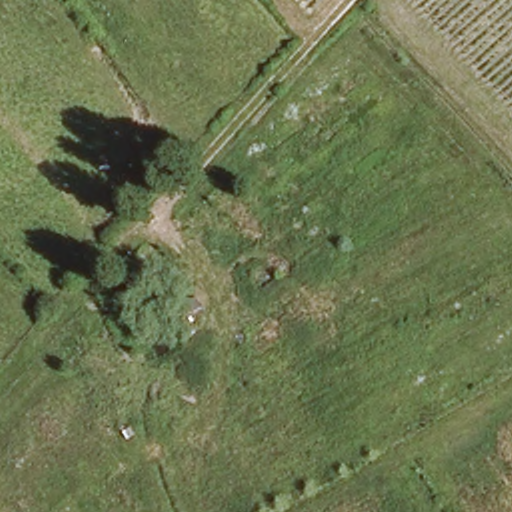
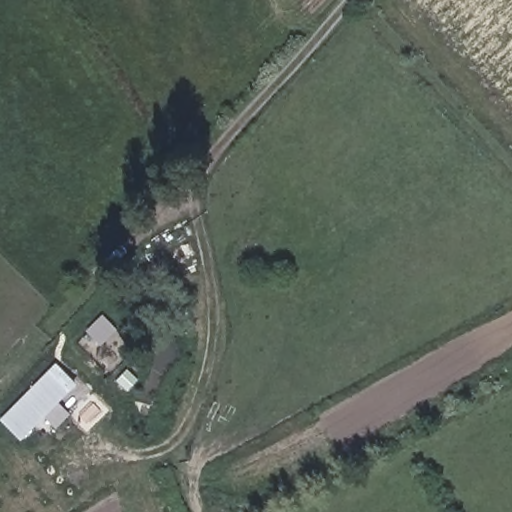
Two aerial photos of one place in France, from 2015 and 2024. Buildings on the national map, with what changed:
new [(0,420),(0,419),(56,362),(78,384),(59,402),(71,414),(55,429),(44,417),(20,440),(0,420)]

